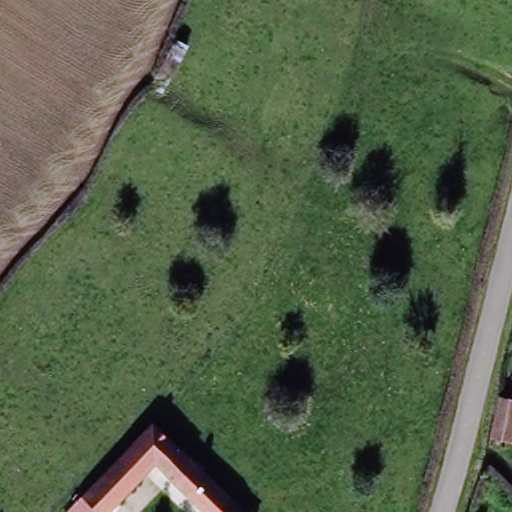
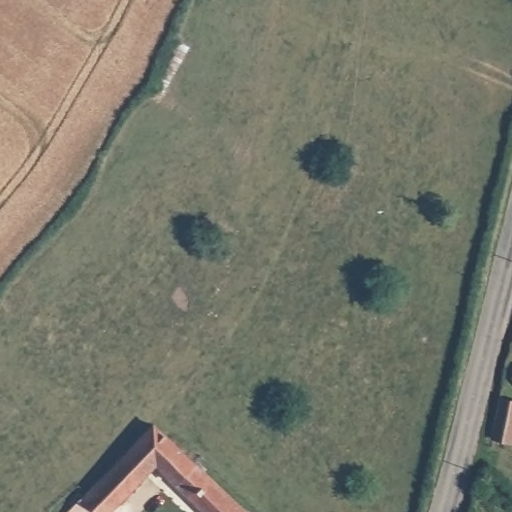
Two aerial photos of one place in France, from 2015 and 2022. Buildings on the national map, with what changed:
unchanged [(502,394),(512,397),(512,437),(493,432),(502,394)]
unchanged [(174,473),(172,470),(163,476),(155,468),(111,512),(66,512),(156,420),(173,438),(159,453),(174,437),(192,455),(249,512),(213,512),(174,473)]

